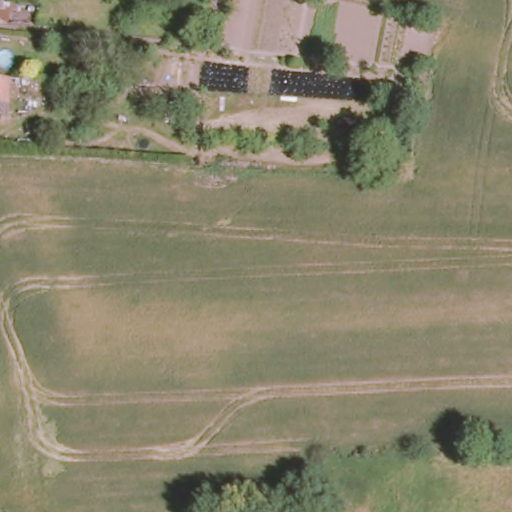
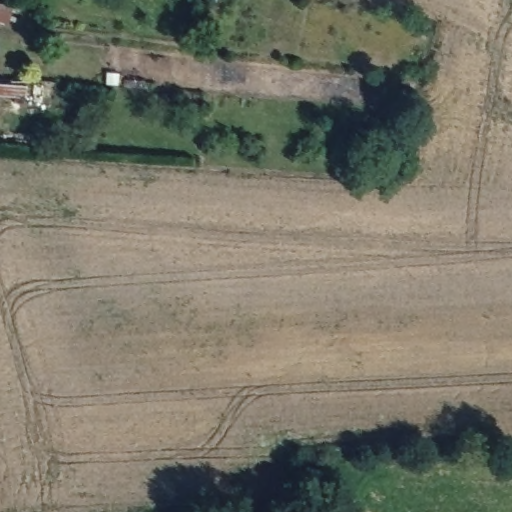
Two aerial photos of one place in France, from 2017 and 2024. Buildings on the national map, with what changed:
unchanged [(10,104),(0,103),(0,78),(10,79),(10,104)]

